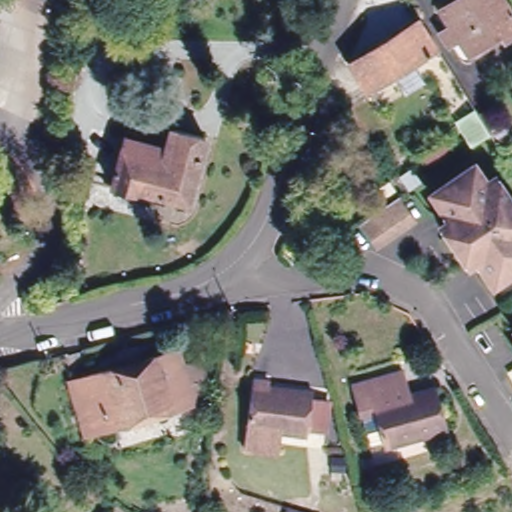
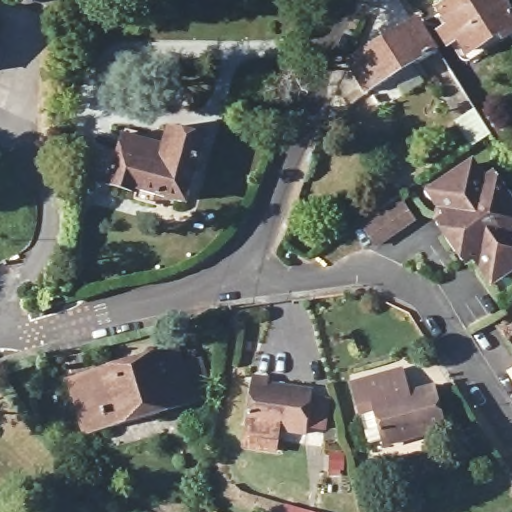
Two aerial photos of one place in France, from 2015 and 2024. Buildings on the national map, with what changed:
unchanged [(504,0),(512,13),(512,32),(505,36),(501,31),(471,51),(442,8),(455,0),(504,0)]
unchanged [(439,43),(370,88),(352,61),(422,15),(439,43)]
unchanged [(492,136),(473,148),(455,120),(473,106),(492,136)]
unchanged [(164,146),(169,126),(205,136),(192,184),(189,184),(182,203),(140,190),(138,194),(111,185),(124,135),(164,146)]
unchanged [(490,277),(482,263),(475,268),(462,247),(465,239),(457,228),(450,228),(437,208),(443,204),(432,187),(470,163),(481,179),(489,175),(497,186),(495,195),(502,196),(511,208),(510,218),(512,218),(512,263),(490,277)]
unchanged [(393,202),(408,224),(375,246),(360,225),(393,202)]
unchanged [(181,349),(196,401),(161,410),(158,401),(107,415),(110,425),(83,432),(69,380),(121,365),(122,370),(146,364),(144,359),(181,349)]
unchanged [(389,443),(380,409),(363,412),(356,382),(406,369),(412,393),(440,386),(452,427),(389,443)]
unchanged [(245,441),(247,420),(255,372),(271,373),(271,380),(313,387),(312,392),(328,395),(323,426),(308,423),(307,428),(279,424),(276,445),(245,441)]

